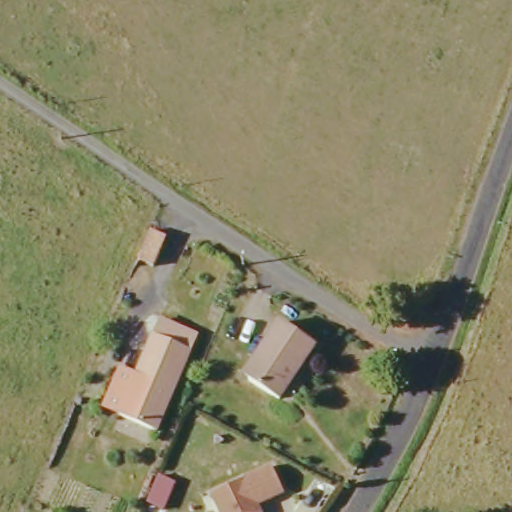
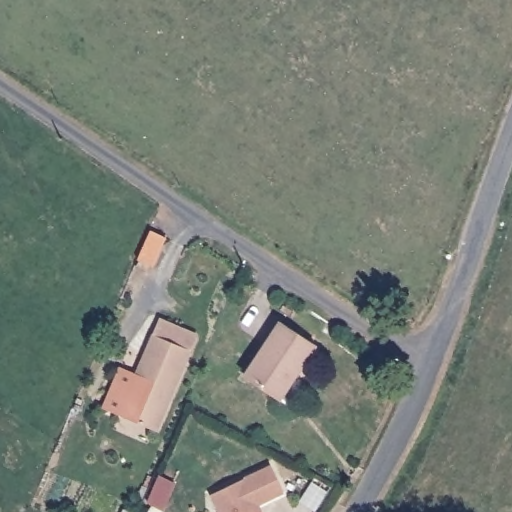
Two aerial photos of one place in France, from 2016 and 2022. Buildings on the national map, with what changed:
unchanged [(165,234),(152,263),(136,256),(148,227),(165,234)]
unchanged [(117,409),(154,318),(194,334),(155,427),(117,409)]
unchanged [(247,377),(267,350),(262,346),(281,320),(316,343),(278,400),(247,377)]
unchanged [(213,494),(273,465),(286,492),(260,504),(264,512),(222,512),(213,494)]
unchanged [(158,473),(173,480),(162,507),(147,501),(158,473)]

